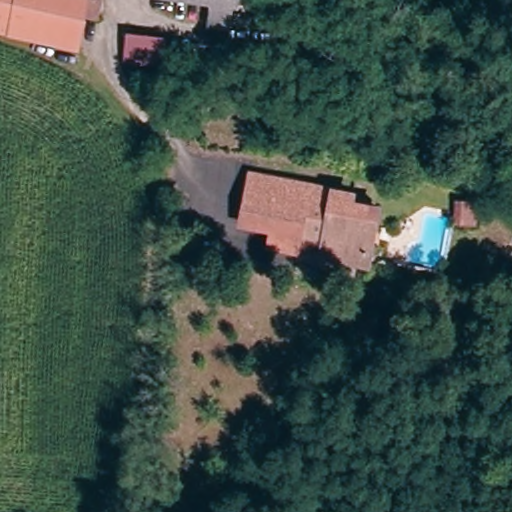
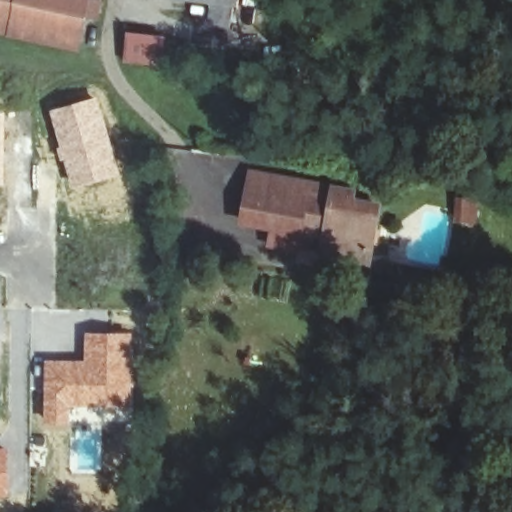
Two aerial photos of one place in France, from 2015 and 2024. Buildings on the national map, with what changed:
unchanged [(0,34),(0,0),(88,0),(80,47),(0,34)]
unchanged [(207,24),(210,4),(176,0),(231,0),(227,26),(207,24)]
unchanged [(159,63),(150,63),(130,60),(125,60),(128,31),(162,34),(159,63)]
new [(97,95),(119,174),(71,187),(59,154),(48,109),(97,95)]
new [(5,111),(3,185),(0,185),(0,111),(5,111)]
unchanged [(321,252),(323,240),(324,228),(301,223),(298,247),(272,242),(275,219),(244,213),(250,174),(332,187),(333,179),(352,180),(352,190),(378,194),(374,218),(363,216),(360,235),(371,238),(369,249),(368,259),(321,252)]
new [(44,359),(84,359),(83,332),(132,331),(133,407),(69,407),(69,424),(43,424),(44,359)]
new [(8,446),(8,496),(0,496),(0,446),(8,446)]

